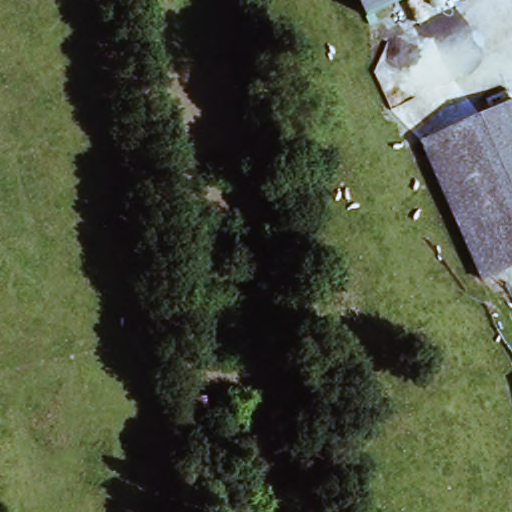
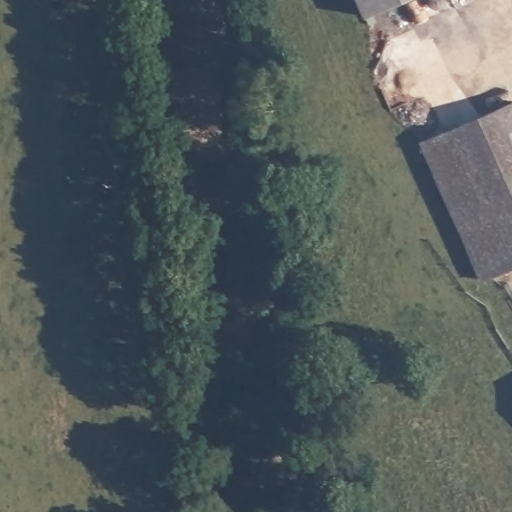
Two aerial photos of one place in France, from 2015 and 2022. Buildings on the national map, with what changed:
unchanged [(358,0),(402,0),(366,17),(358,0)]
unchanged [(512,259),(483,272),(423,141),(512,100),(512,259)]
unchanged [(180,432),(178,395),(206,393),(210,426),(180,432)]

